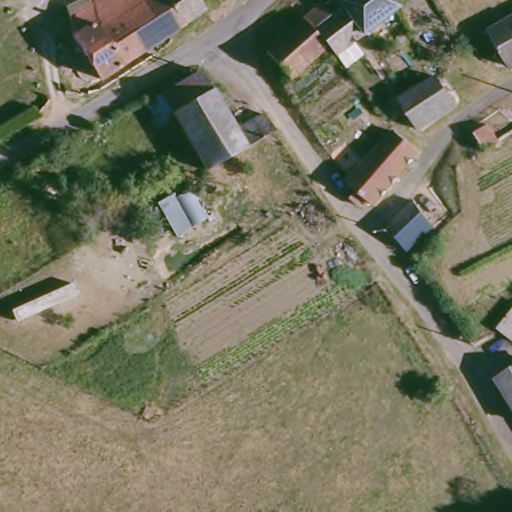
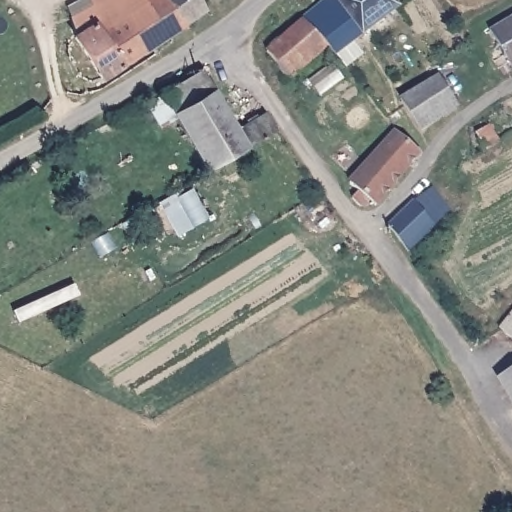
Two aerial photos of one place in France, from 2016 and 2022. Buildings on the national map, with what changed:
unchanged [(103,77),(77,36),(74,19),(98,5),(95,0),(203,0),(209,9),(103,77)]
unchanged [(339,14),(350,6),(346,0),(402,0),(405,5),(335,65),(329,52),(312,17),(329,2),(339,14)]
unchanged [(329,52),(300,78),(275,50),(312,17),(329,52)]
unchanged [(512,21),(512,53),(497,29),(512,21)]
unchanged [(179,114),(161,122),(148,100),(165,90),(204,70),(238,131),(268,115),(277,130),(211,170),(179,114)]
unchanged [(467,104),(430,128),(429,129),(407,99),(446,74),(467,104)]
unchanged [(485,120),(497,141),(484,150),(472,133),(485,120)]
unchanged [(395,139),(417,159),(373,215),(350,192),(395,139)]
unchanged [(399,224),(425,196),(444,225),(417,249),(399,224)]
unchanged [(512,307),(512,335),(499,325),(512,307)]
unchanged [(512,368),(512,400),(498,377),(512,368)]

